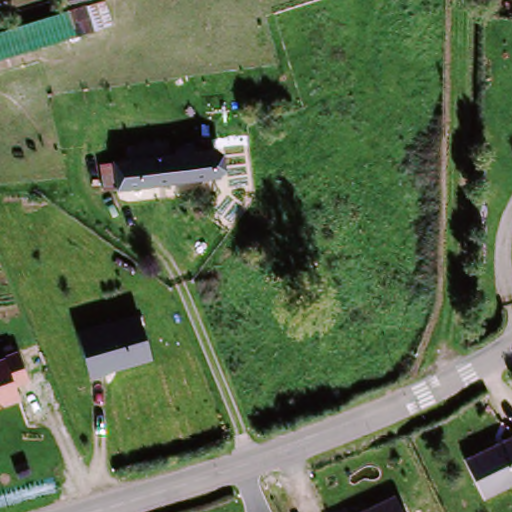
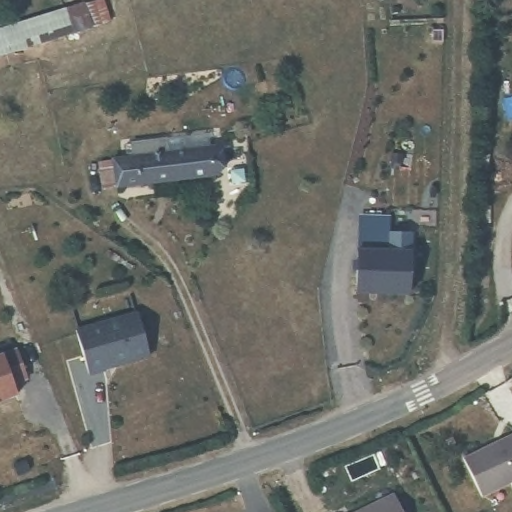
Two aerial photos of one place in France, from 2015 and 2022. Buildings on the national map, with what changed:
unchanged [(80,8),(87,31),(0,59),(0,34),(80,8)]
unchanged [(230,175),(130,187),(128,163),(185,155),(184,147),(205,144),(206,153),(227,150),(230,175)]
new [(357,249),(386,250),(387,229),(409,230),(407,291),(355,289),(357,249)]
unchanged [(136,310),(150,357),(87,373),(74,327),(136,310)]
unchanged [(16,349),(28,380),(13,386),(17,397),(0,402),(0,354),(16,349)]
unchanged [(512,442),(512,490),(488,501),(470,462),(512,442)]
unchanged [(366,512),(396,496),(404,512),(366,512)]

